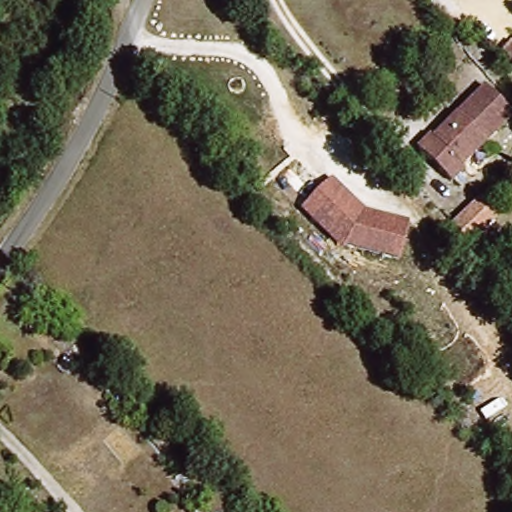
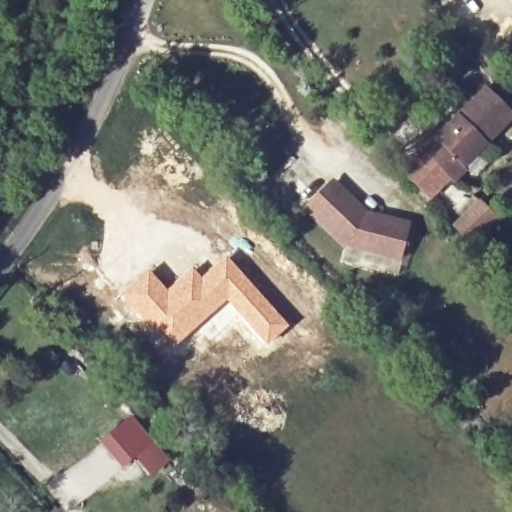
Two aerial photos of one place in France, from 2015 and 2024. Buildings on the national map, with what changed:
unchanged [(512,108),(512,124),(470,166),(474,169),(460,183),(424,148),(437,136),(440,138),(493,89),(512,108)]
unchanged [(366,210),(410,223),(401,261),(345,249),(342,252),(302,209),(334,179),(366,210)]
new [(149,267),(167,288),(194,264),(202,275),(225,253),(289,325),(267,345),(227,303),(172,350),(119,294),(149,267)]
new [(119,294),(172,350),(162,359),(110,303),(119,294)]
new [(135,410),(175,459),(152,478),(136,458),(124,468),(102,441),(135,410)]

